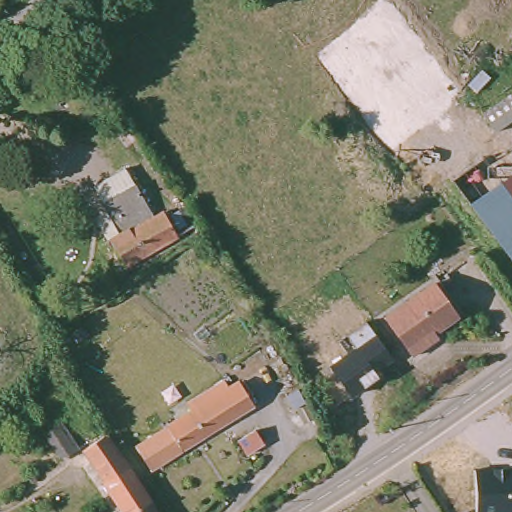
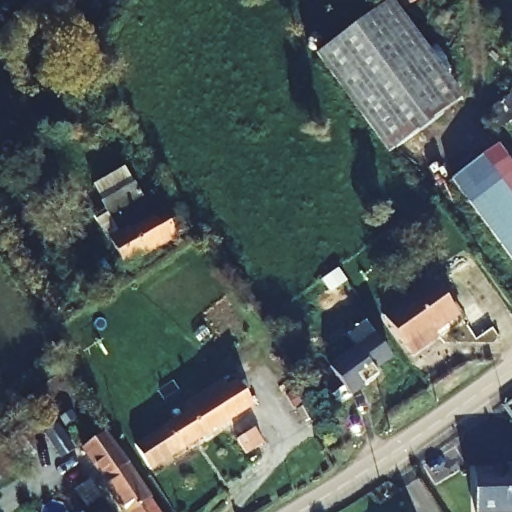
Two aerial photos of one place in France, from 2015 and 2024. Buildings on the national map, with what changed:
new [(465,96),(389,153),(317,54),(389,0),(394,0),(465,96)]
unchanged [(482,111),(495,102),(512,91),(512,118),(494,130),(482,111)]
unchanged [(512,255),(488,220),(500,210),(472,170),(492,156),(512,184),(512,255)]
unchanged [(92,219),(105,211),(102,204),(92,187),(125,170),(133,187),(136,186),(154,217),(163,211),(166,215),(174,210),(185,231),(178,235),(180,240),(125,270),(111,244),(109,246),(92,219)]
unchanged [(438,280),(460,316),(408,351),(385,314),(438,280)]
unchanged [(350,396),(329,365),(355,347),(348,335),(367,322),(395,365),(350,396)]
unchanged [(228,369),(233,375),(240,371),(257,393),(155,459),(142,438),(195,403),(190,396),(228,369)]
unchanged [(288,381),(295,395),(300,393),(317,424),(310,427),(298,406),(286,411),(278,395),(267,399),(264,392),(288,381)]
unchanged [(268,435),(247,447),(235,430),(228,419),(240,412),(247,423),(257,418),(268,435)]
unchanged [(102,432),(157,512),(123,512),(80,448),(102,432)]
unchanged [(512,465),(512,512),(475,512),(473,467),(512,465)]

